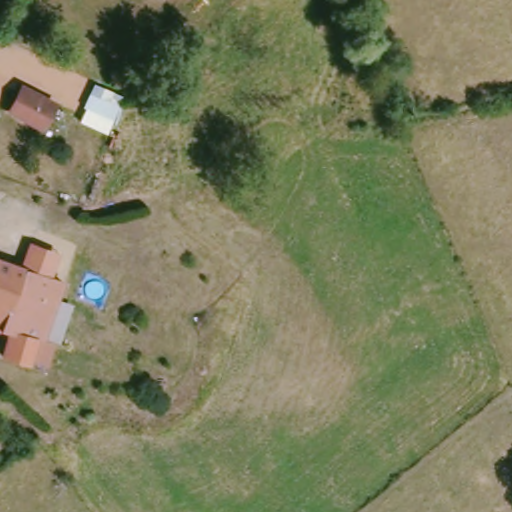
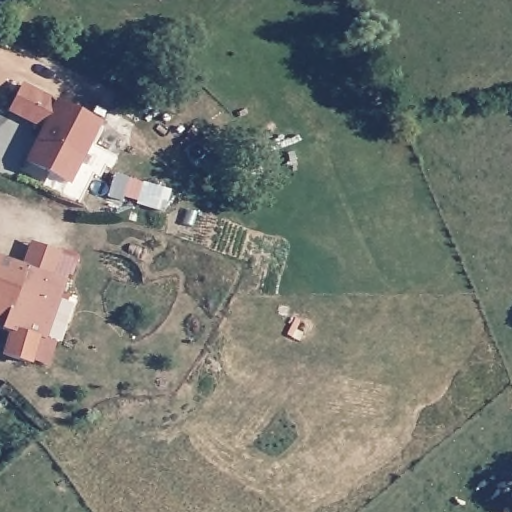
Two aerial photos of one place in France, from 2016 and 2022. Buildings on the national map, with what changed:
demolished [(125,96),(121,110),(117,121),(89,109),(100,84),(107,87),(125,96)]
unchanged [(58,102),(46,128),(13,110),(25,86),(58,102)]
new [(44,127),(58,102),(102,123),(70,184),(25,162),(44,127)]
unchanged [(53,364),(39,358),(35,367),(5,358),(14,333),(0,329),(0,258),(69,281),(62,302),(50,337),(61,340),(53,364)]

